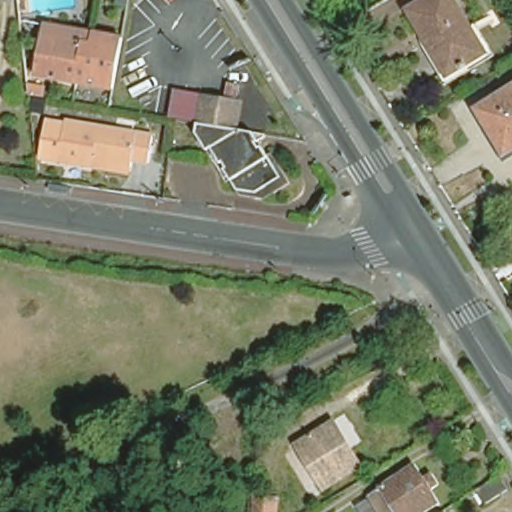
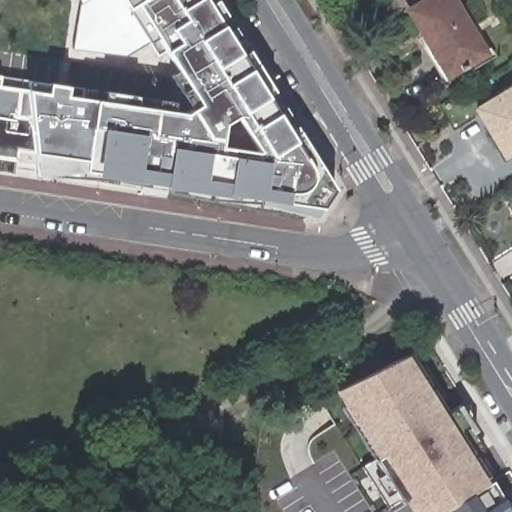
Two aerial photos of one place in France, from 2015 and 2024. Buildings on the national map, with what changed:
new [(292,148),(300,160),(298,176),(291,184),(280,186),(280,197),(0,159),(0,85),(38,91),(39,80),(58,81),(56,90),(180,107),(183,100),(118,0),(197,0),(283,135),(292,148)]
new [(280,186),(291,184),(298,176),(300,160),(292,148),(283,135),(197,0),(208,0),(209,2),(215,0),(216,0),(225,15),(218,19),(221,25),(240,53),(248,48),(275,92),(266,97),(276,112),(284,107),(335,188),(313,218),(258,206),(261,195),(280,197),(280,186)]
unchanged [(447,71),(427,37),(422,40),(402,8),(415,0),(445,0),(461,26),(477,52),(447,71)]
unchanged [(468,22),(487,54),(438,83),(414,44),(422,40),(427,37),(447,71),(477,52),(461,26),(468,22)]
demolished [(48,34),(78,40),(88,42),(88,41),(90,29),(116,34),(117,34),(107,86),(71,79),(31,71),(31,66),(39,32),(48,34)]
unchanged [(501,163),(485,138),(490,135),(476,112),(512,90),(512,156),(501,163)]
demolished [(255,142),(252,144),(255,150),(259,148),(266,161),(263,162),(266,169),(270,167),(278,181),(255,195),(239,192),(235,187),(238,185),(235,179),(232,181),(224,169),(227,167),(223,162),(221,164),(212,149),(197,128),(199,120),(202,101),(237,107),(233,126),(237,126),(260,130),(260,139),(255,142)]
demolished [(85,160),(83,168),(81,167),(50,162),(35,160),(41,120),(58,123),(66,125),(144,137),(139,165),(124,162),(123,167),(85,160)]
new [(488,477),(491,482),(443,512),(413,512),(406,501),(390,511),(362,467),(375,460),(343,410),(347,407),(337,391),(411,355),(419,367),(424,365),(445,399),(440,401),(448,413),(456,409),(469,427),(484,452),(476,457),(461,433),(479,462),(483,459),(493,474),(488,477)]
demolished [(294,447),(330,424),(359,467),(322,491),(294,447)]
demolished [(424,492),(432,506),(422,512),(374,512),(366,498),(409,470),(417,482),(424,492)]
demolished [(506,492),(484,507),(474,491),(496,477),(506,492)]
new [(491,482),(510,512),(443,512),(491,482)]
new [(505,494),(512,506),(512,509),(509,511),(501,497),(505,494)]
demolished [(254,498),(275,502),(274,512),(253,512),(254,498)]

